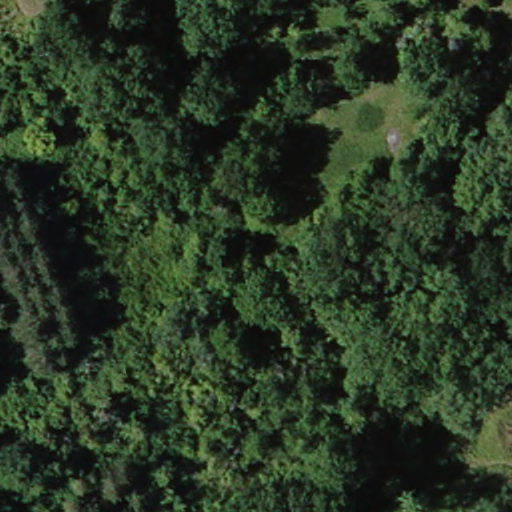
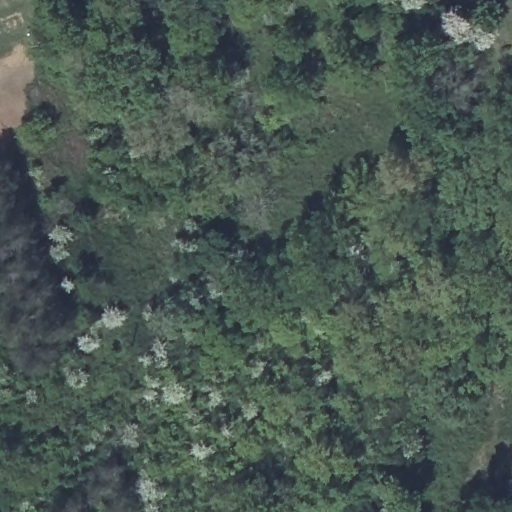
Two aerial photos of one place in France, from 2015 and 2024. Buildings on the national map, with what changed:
unchanged [(156,0),(167,0),(161,6),(156,0)]

